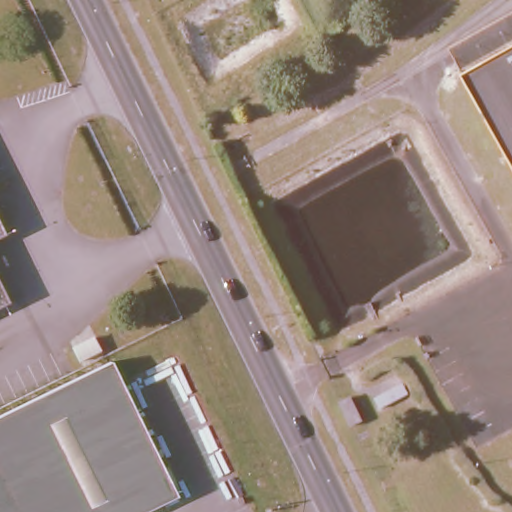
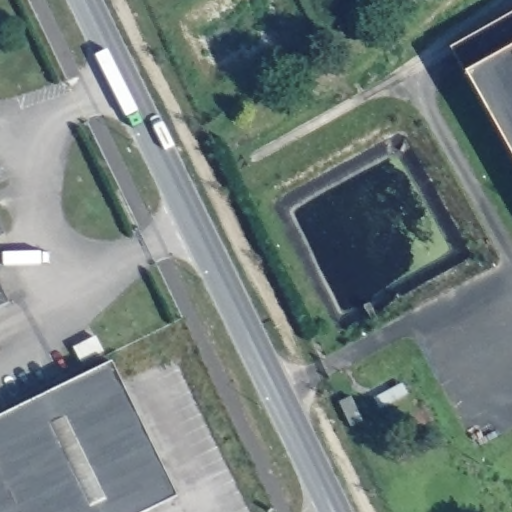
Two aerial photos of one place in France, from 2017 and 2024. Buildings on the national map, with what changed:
unchanged [(447,45),(512,7),(512,43),(463,71),(447,45)]
unchanged [(463,71),(512,43),(512,157),(463,71)]
unchanged [(0,229),(0,226),(1,229),(0,229)]
unchanged [(8,298),(0,301),(0,281),(0,283),(8,298)]
unchanged [(95,338),(103,352),(78,364),(71,349),(95,338)]
unchanged [(150,512),(0,512),(0,416),(109,363),(176,499),(150,512)]
unchanged [(368,422),(357,428),(344,402),(356,397),(368,422)]

